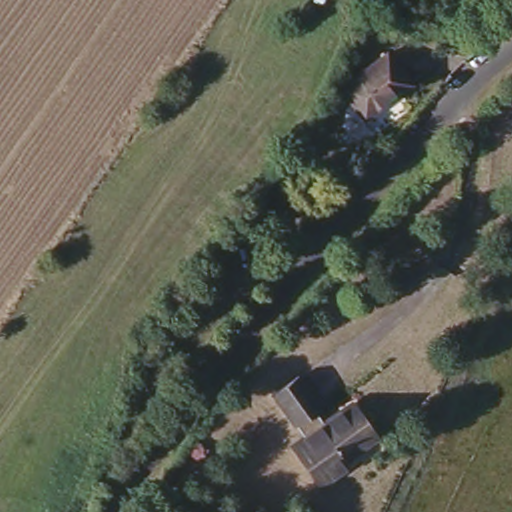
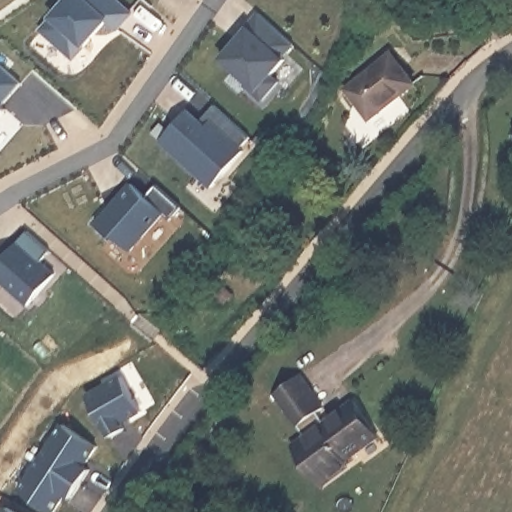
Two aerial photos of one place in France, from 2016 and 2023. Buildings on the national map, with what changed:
new [(134,13),(117,33),(107,21),(82,49),(71,61),(39,31),(49,19),(65,0),(119,0),(134,13)]
new [(240,38),(237,36),(257,13),(297,50),(286,61),(257,94),(219,61),(240,38)]
unchanged [(339,87),(386,54),(415,87),(365,127),(339,87)]
new [(2,105),(6,109),(0,115),(0,66),(21,84),(2,105)]
new [(253,138),(245,149),(211,190),(156,144),(187,111),(200,121),(215,105),(253,138)]
new [(168,225),(160,218),(127,255),(112,242),(109,242),(93,228),(129,188),(143,201),(154,190),(179,212),(168,225)]
new [(37,266),(52,279),(25,309),(0,287),(0,263),(25,235),(47,256),(37,266)]
unchanged [(301,439),(270,393),(295,376),(317,408),(313,411),(323,424),(353,405),(377,440),(345,464),(347,470),(331,481),(326,476),(315,482),(291,448),(301,439)]
new [(137,413),(118,424),(120,432),(105,438),(82,396),(118,377),(137,413)]
new [(91,447),(79,467),(87,472),(68,501),(60,495),(48,512),(15,490),(58,426),(91,447)]
new [(1,512),(4,507),(12,512),(1,512)]

